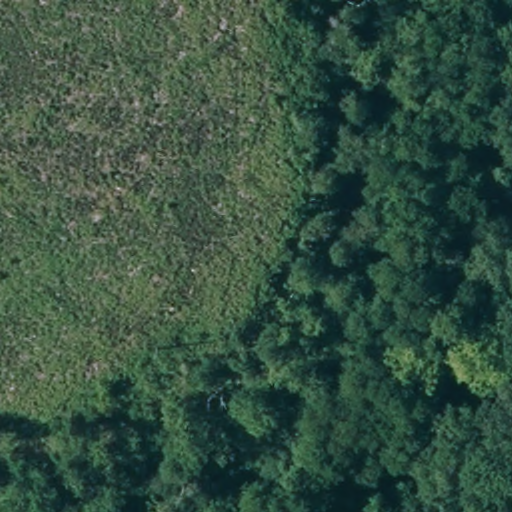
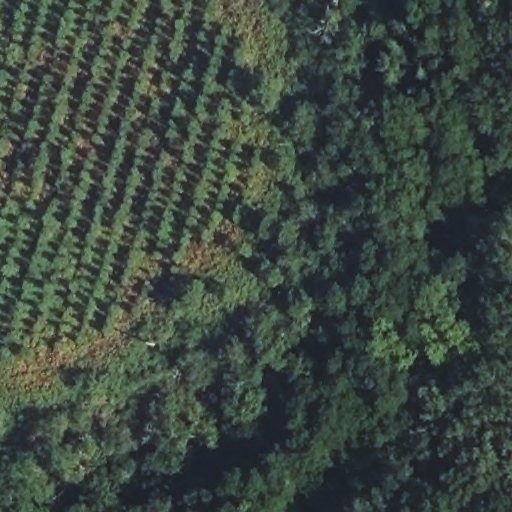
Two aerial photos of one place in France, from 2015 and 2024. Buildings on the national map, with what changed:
[]

